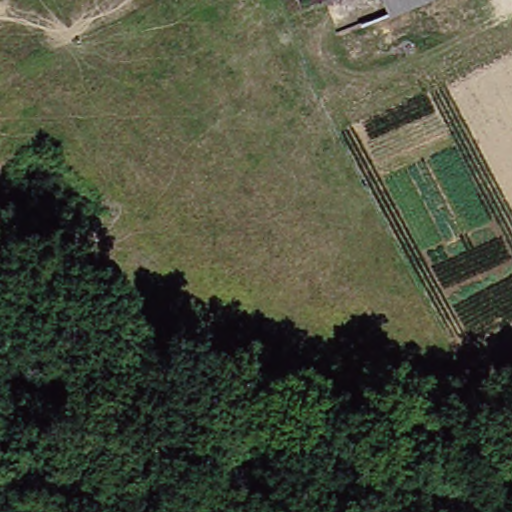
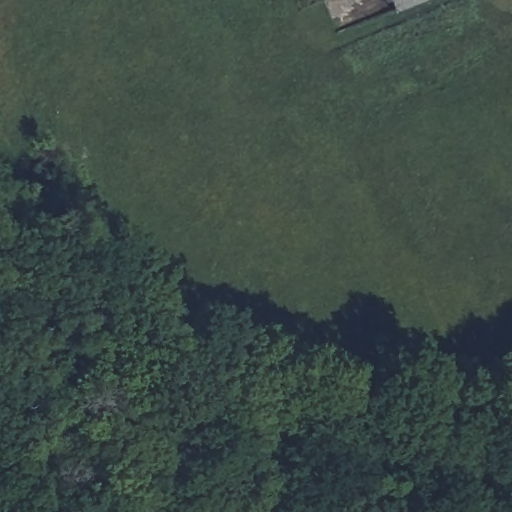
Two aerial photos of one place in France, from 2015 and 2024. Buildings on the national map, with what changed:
unchanged [(378,0),(427,0),(384,16),(378,0)]

